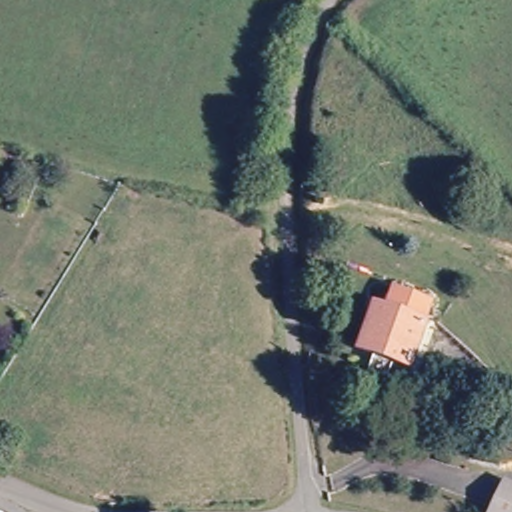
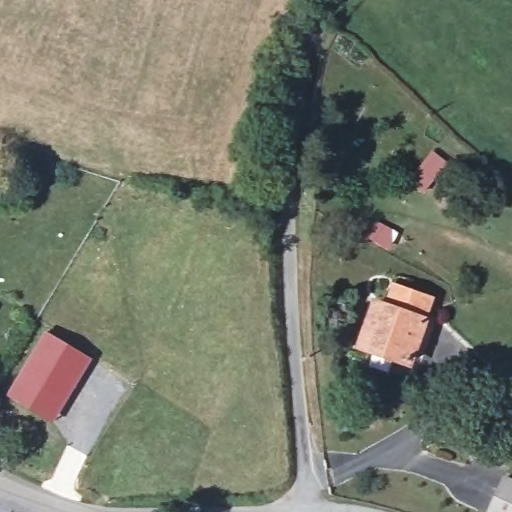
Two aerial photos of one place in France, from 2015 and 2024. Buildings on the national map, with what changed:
unchanged [(364,342),(384,300),(392,304),(400,288),(435,304),(407,362),(364,342)]
new [(46,331),(92,358),(53,422),(5,394),(46,331)]
unchanged [(512,512),(484,512),(499,479),(512,484),(512,512)]

